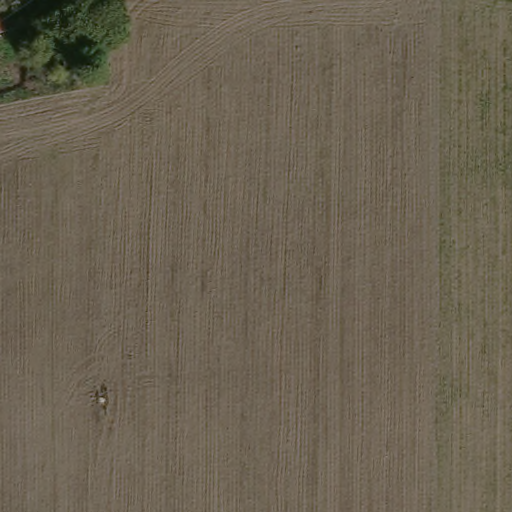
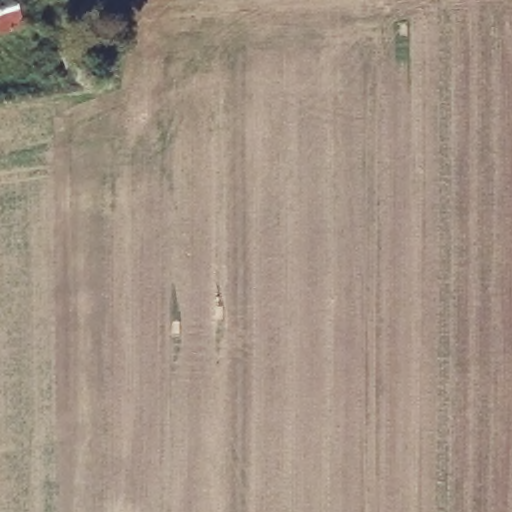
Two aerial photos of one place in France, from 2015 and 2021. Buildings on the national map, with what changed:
unchanged [(5,8),(29,3),(32,26),(8,32),(5,8)]

